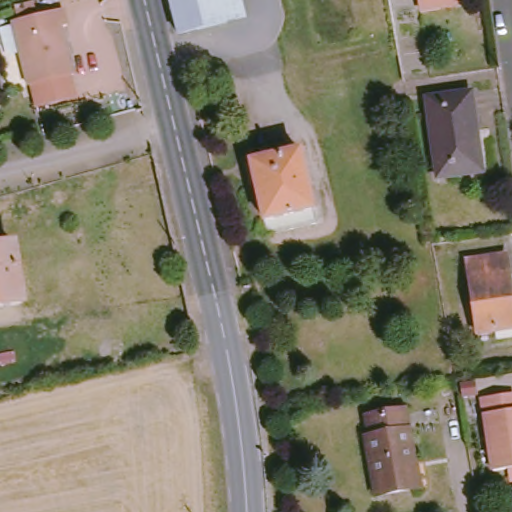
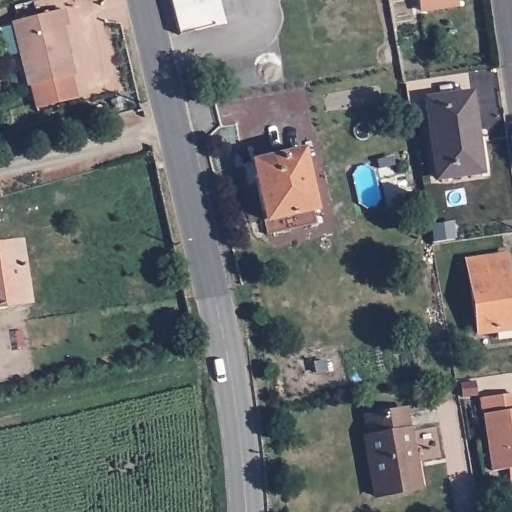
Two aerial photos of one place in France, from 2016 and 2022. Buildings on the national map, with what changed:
unchanged [(70,39),(75,63),(73,64),(79,86),(39,95),(34,73),(31,74),(16,10),(60,0),(65,0),(69,14),(60,17),(65,40),(70,39)]
unchanged [(179,0),(183,0),(187,15),(235,5),(239,20),(190,32),(187,33),(179,0)]
unchanged [(187,15),(183,0),(234,0),(235,5),(187,15)]
unchanged [(474,92),(486,171),(442,179),(430,99),(474,92)]
unchanged [(270,233),(267,221),(253,162),(301,151),(315,210),(317,223),(270,233)]
unchanged [(18,304),(0,307),(0,246),(10,244),(18,304)]
unchanged [(510,261),(512,275),(512,324),(480,328),(470,267),(510,261)]
unchanged [(512,390),(512,464),(497,466),(487,394),(512,390)]
unchanged [(406,410),(419,487),(372,495),(362,437),(368,436),(365,416),(406,410)]

